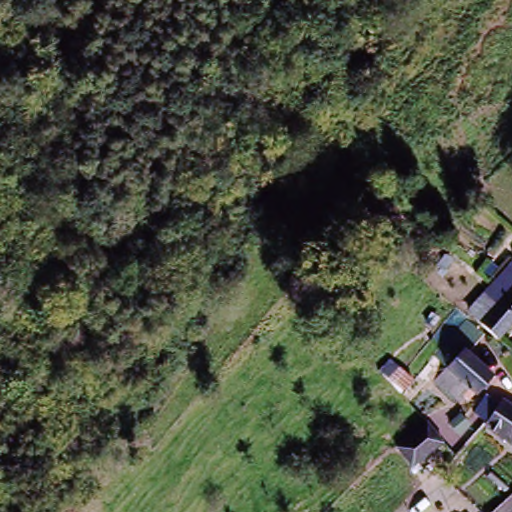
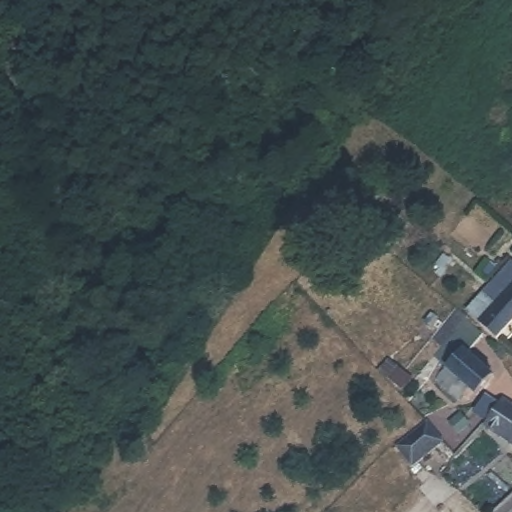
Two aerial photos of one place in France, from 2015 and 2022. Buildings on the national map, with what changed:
unchanged [(512,298),(512,337),(506,343),(485,324),(511,299),(512,298)]
unchanged [(485,403),(474,393),(464,402),(453,390),(441,399),(425,383),(464,345),(479,331),(502,350),(487,367),(504,385),(485,403)]
unchanged [(489,422),(506,399),(512,403),(512,439),(489,422)]
unchanged [(449,446),(411,475),(396,455),(432,430),(449,446)]

